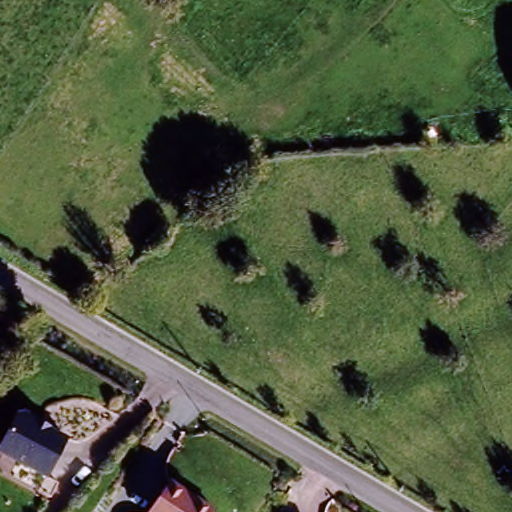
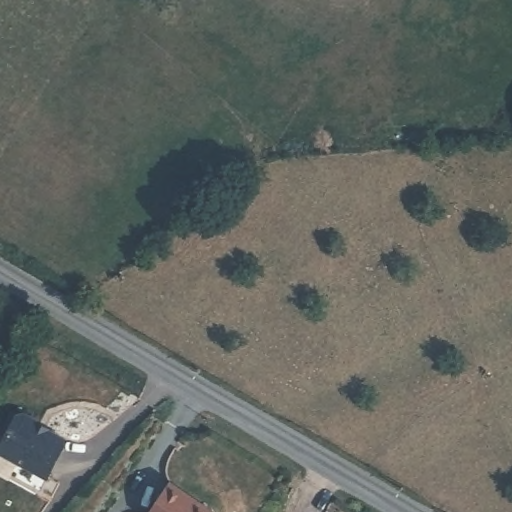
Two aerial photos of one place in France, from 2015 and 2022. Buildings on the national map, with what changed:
unchanged [(53,479),(4,455),(24,414),(43,424),(42,426),(73,441),(53,479)]
unchanged [(213,511),(212,512),(148,512),(168,480),(213,511)]

